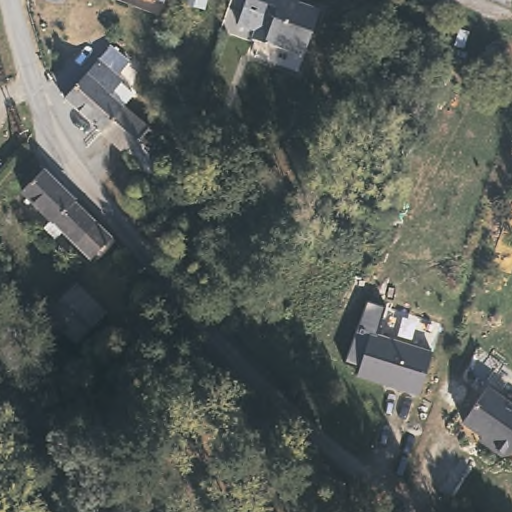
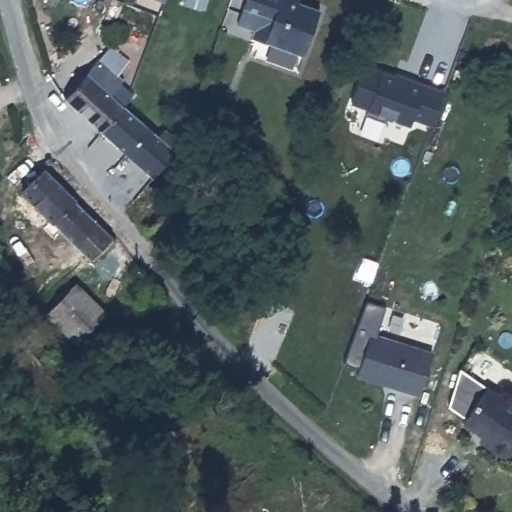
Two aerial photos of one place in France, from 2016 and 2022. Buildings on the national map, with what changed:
unchanged [(165,0),(163,3),(156,0),(165,0)]
unchanged [(182,8),(185,1),(185,0),(205,0),(201,14),(182,8)]
unchanged [(300,0),(302,0),(321,8),(303,53),(264,38),(271,21),(239,9),(243,0),(288,0),(298,4),(300,0)]
unchanged [(163,126),(175,137),(175,138),(177,139),(172,146),(174,148),(150,173),(125,149),(102,127),(64,91),(104,49),(111,41),(129,59),(122,66),(118,71),(123,75),(119,79),(128,86),(134,93),(123,105),(145,126),(156,134),(163,126)]
new [(432,126),(412,119),(410,125),(389,116),(387,122),(365,114),(367,108),(352,101),(365,65),(389,74),(389,71),(444,90),(432,126)]
unchanged [(47,177),(99,229),(79,249),(27,198),(47,177)]
demolished [(155,190),(181,221),(162,236),(134,203),(155,190)]
unchanged [(79,280),(111,308),(79,341),(45,312),(79,280)]
unchanged [(368,331),(430,350),(417,392),(355,373),(368,331)]
unchanged [(512,451),(509,456),(502,457),(490,449),(489,442),(461,423),(485,388),(512,409),(512,451)]

